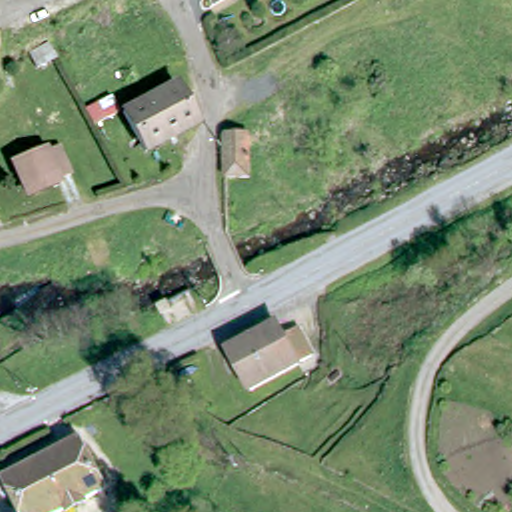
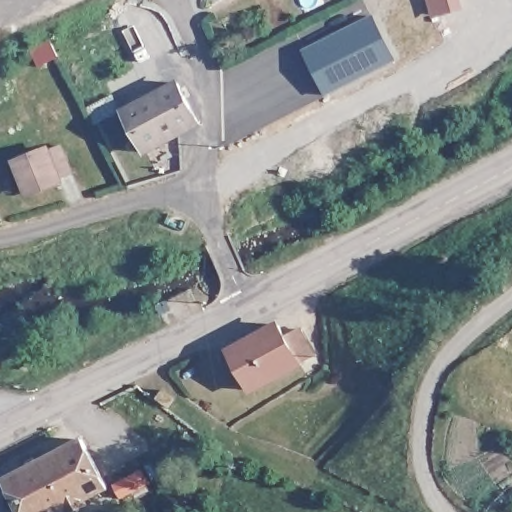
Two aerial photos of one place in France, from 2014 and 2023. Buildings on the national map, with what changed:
new [(372,14),(395,60),(325,97),(301,51),(372,14)]
demolished [(20,62),(48,45),(58,65),(31,79),(20,62)]
unchanged [(201,127),(170,145),(150,156),(135,130),(129,117),(156,99),(178,86),(201,127)]
unchanged [(117,101),(125,117),(100,131),(91,116),(117,101)]
demolished [(250,182),(225,182),(223,142),(250,141),(250,182)]
unchanged [(21,171),(51,159),(66,152),(76,177),(61,182),(30,195),(21,171)]
unchanged [(288,343),(302,336),(315,362),(253,395),(233,356),(281,329),(288,343)]
unchanged [(119,486),(105,493),(106,496),(75,512),(17,512),(5,487),(82,448),(90,462),(103,456),(119,486)]

